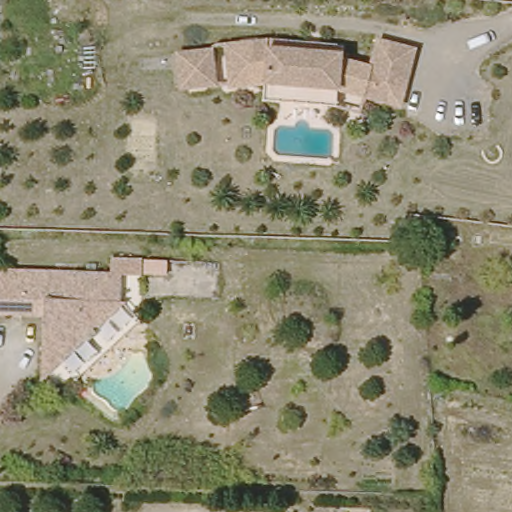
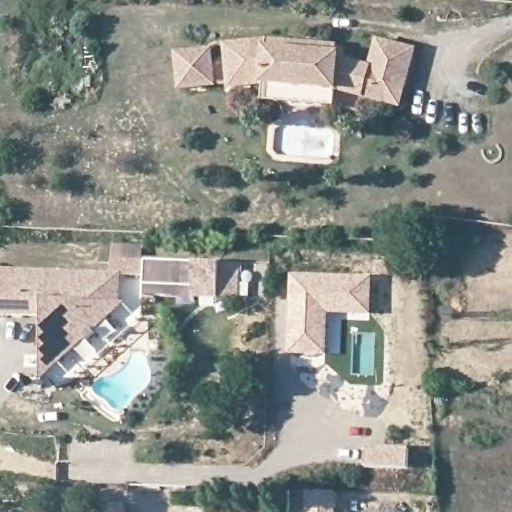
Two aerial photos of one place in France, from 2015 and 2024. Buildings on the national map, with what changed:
unchanged [(269,36),(268,51),(345,55),(344,62),(371,64),(374,39),(413,46),(404,101),(341,91),(265,87),(230,90),(225,41),(269,36)]
unchanged [(269,36),(345,41),(345,55),(268,51),(269,36)]
unchanged [(173,59),(207,55),(215,90),(180,94),(173,59)]
unchanged [(340,107),(265,103),(265,87),(341,91),(340,107)]
unchanged [(105,275),(105,256),(137,257),(137,275),(105,275)]
new [(195,262),(220,262),(220,269),(239,269),(238,298),(218,298),(192,298),(145,296),(145,285),(145,260),(195,262)]
new [(290,272),(373,276),(372,316),(330,315),(327,357),(287,355),(290,272)]
unchanged [(105,301),(115,301),(47,373),(38,382),(40,319),(23,318),(0,317),(0,275),(105,275),(105,301)]
new [(93,498),(102,498),(102,492),(126,493),(125,512),(93,512),(93,498)]

